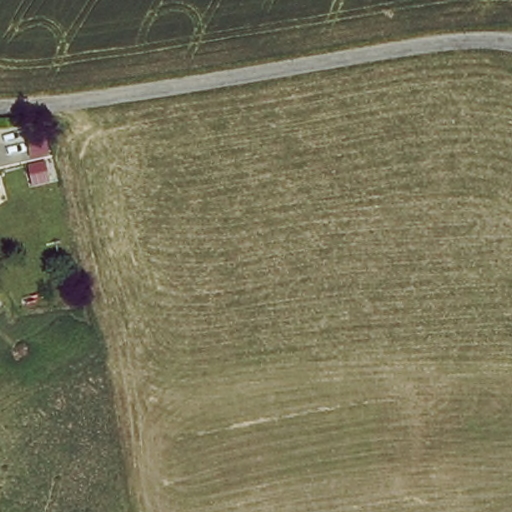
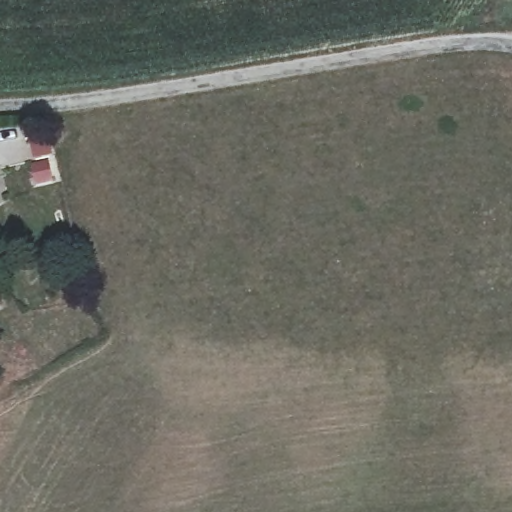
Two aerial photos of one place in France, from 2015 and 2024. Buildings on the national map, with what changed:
unchanged [(0,188),(0,181),(3,186),(0,188)]

